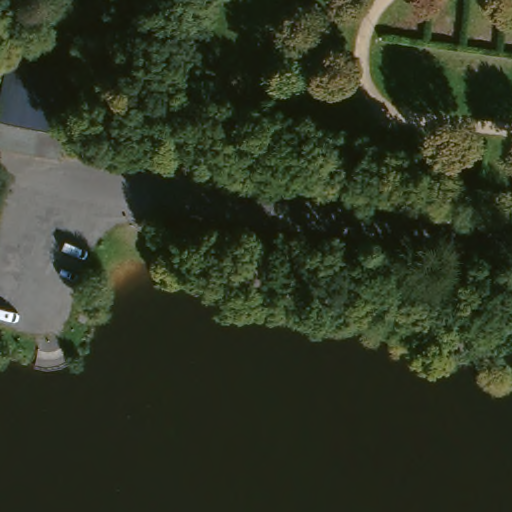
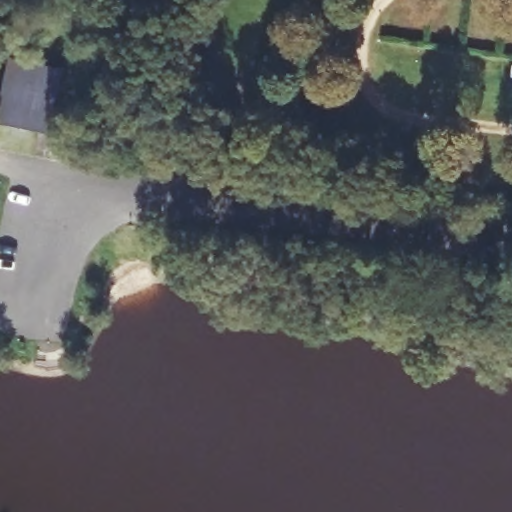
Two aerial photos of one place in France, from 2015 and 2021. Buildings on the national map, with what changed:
unchanged [(46,129),(0,120),(0,83),(1,76),(53,86),(46,129)]

